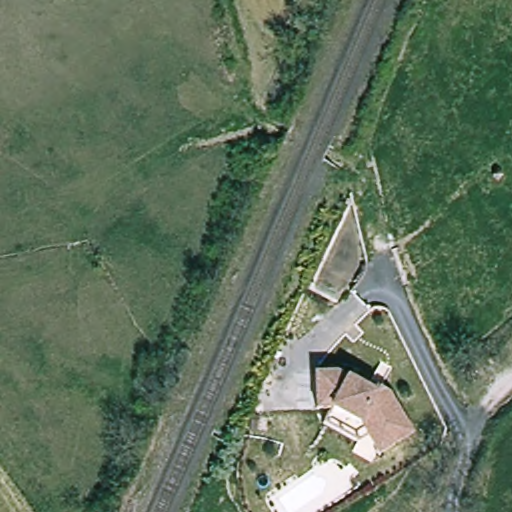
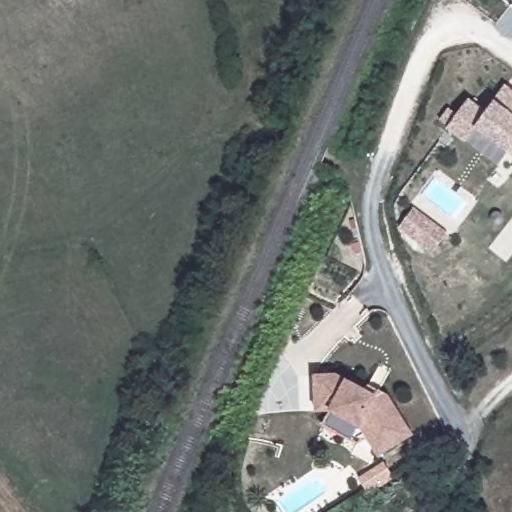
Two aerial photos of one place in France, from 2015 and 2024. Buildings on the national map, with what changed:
new [(457,114),(468,98),(485,112),(493,101),(505,84),(512,89),(512,156),(509,154),(499,166),(467,142),(465,144),(446,129),(447,126),(439,120),(448,108),(457,114)]
new [(409,203),(442,228),(428,247),(394,221),(409,203)]
unchanged [(366,390),(369,385),(379,390),(388,396),(412,435),(378,456),(359,425),(329,408),(314,408),(315,372),(336,373),(366,390)]

